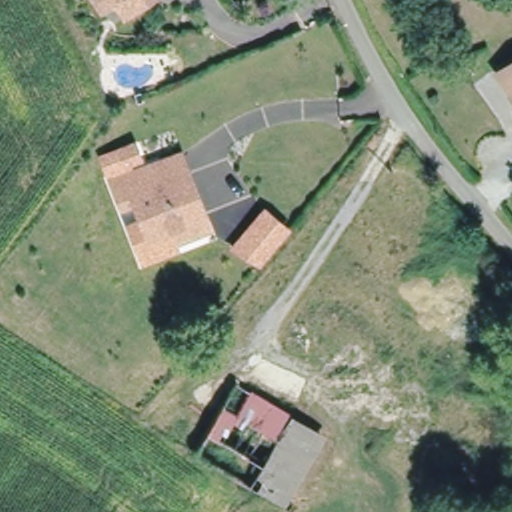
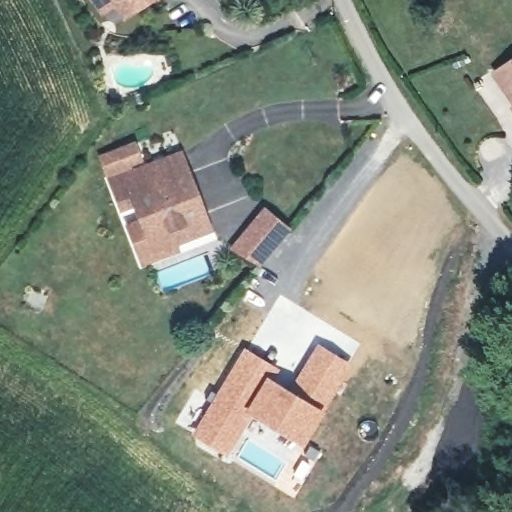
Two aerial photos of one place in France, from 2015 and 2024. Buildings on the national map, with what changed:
unchanged [(105,0),(133,0),(115,13),(105,0)]
unchanged [(512,66),(512,94),(501,72),(512,66)]
unchanged [(512,104),(512,107),(511,105),(512,104)]
unchanged [(106,179),(97,155),(136,139),(145,162),(106,179)]
unchanged [(171,242),(164,228),(148,234),(133,201),(118,207),(106,179),(153,159),(173,150),(182,170),(201,213),(207,228),(171,242)]
unchanged [(291,228),(260,266),(230,247),(263,206),(291,228)]
unchanged [(181,251),(141,266),(125,222),(140,217),(148,234),(164,228),(171,242),(176,240),(181,251)]
new [(316,342),(352,363),(325,407),(289,387),(316,342)]
new [(243,346),(279,367),(273,378),(289,387),(325,407),(303,444),(251,416),(227,456),(190,435),(243,346)]
demolished [(242,380),(300,411),(259,486),(202,455),(242,380)]

